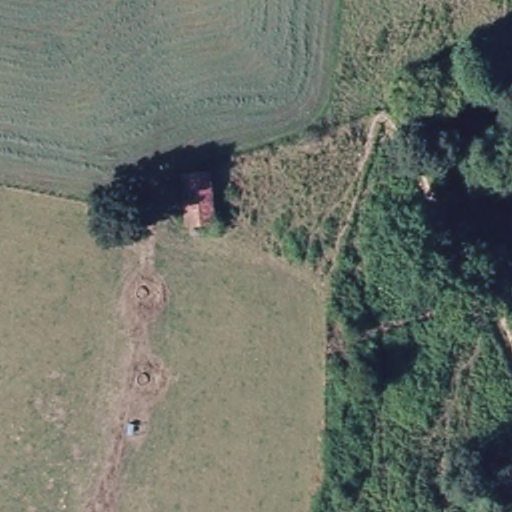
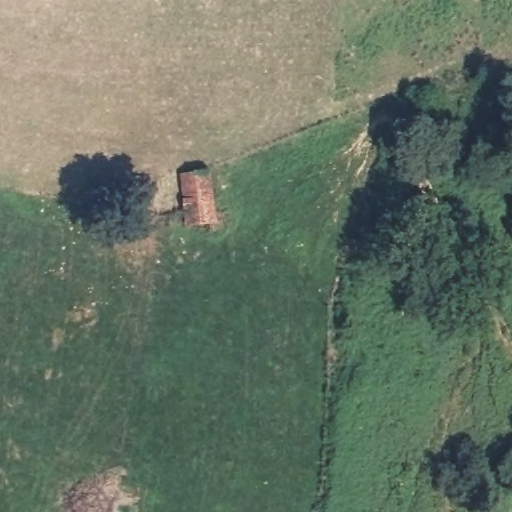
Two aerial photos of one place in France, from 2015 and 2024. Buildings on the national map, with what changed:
unchanged [(181,180),(212,172),(211,185),(216,222),(189,231),(181,180)]

